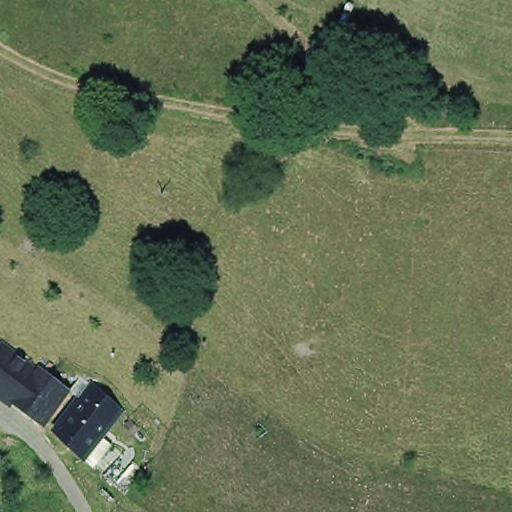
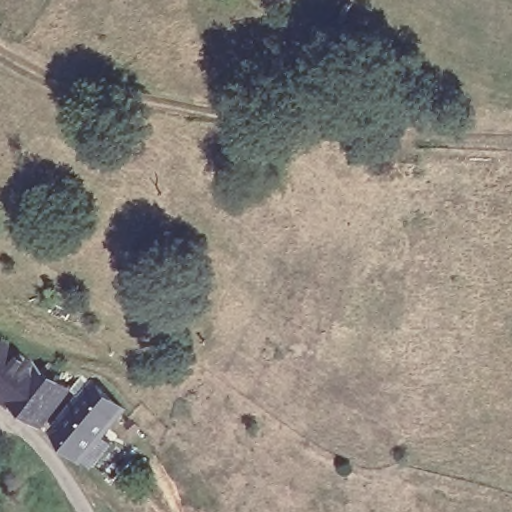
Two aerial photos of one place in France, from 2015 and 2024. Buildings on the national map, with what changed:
unchanged [(41,372),(17,404),(0,391),(0,351),(4,344),(41,372)]
unchanged [(53,413),(49,411),(40,422),(17,404),(41,372),(44,369),(68,386),(53,405),(57,408),(53,413)]
unchanged [(83,454),(50,429),(87,381),(120,406),(101,431),(111,439),(93,462),(83,454)]
unchanged [(138,429),(133,435),(123,426),(129,421),(138,429)]

